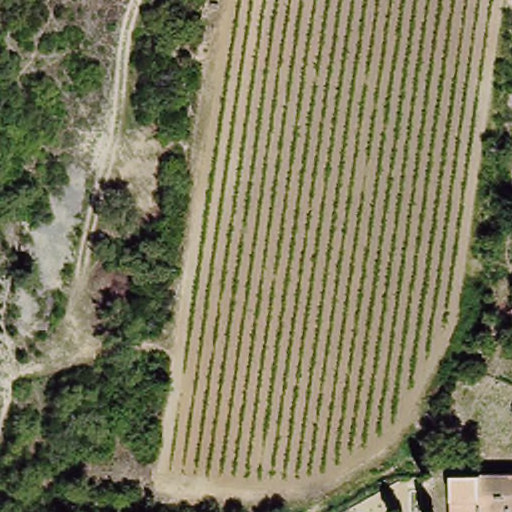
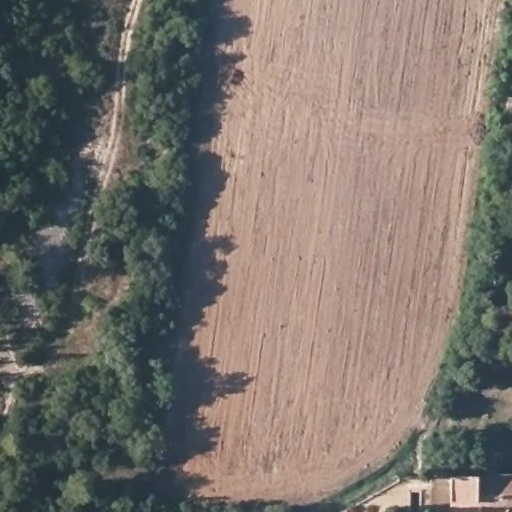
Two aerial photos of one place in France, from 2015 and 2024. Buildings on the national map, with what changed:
unchanged [(512,476),(512,512),(455,512),(461,472),(512,476)]

